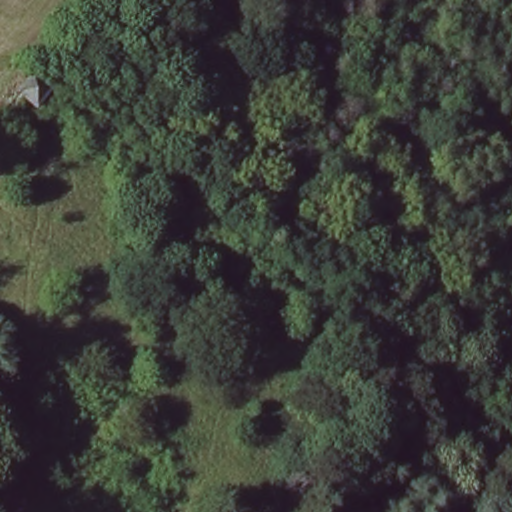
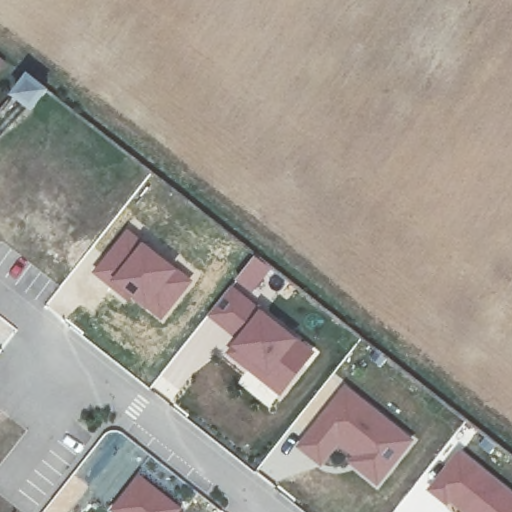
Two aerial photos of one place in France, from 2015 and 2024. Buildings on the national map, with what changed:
unchanged [(48,87),(33,104),(13,88),(28,71),(48,87)]
new [(126,226),(193,279),(162,320),(91,272),(126,226)]
new [(255,253),(271,267),(251,291),(235,278),(255,253)]
new [(315,351),(281,396),(226,352),(236,338),(206,315),(231,285),(315,351)]
new [(346,383),(416,441),(378,486),(348,463),(353,456),(339,446),(321,467),(296,447),(346,383)]
new [(459,449),(512,491),(512,512),(461,512),(449,502),(447,506),(426,489),(459,449)]
new [(181,508),(179,512),(112,512),(108,509),(137,474),(181,508)]

